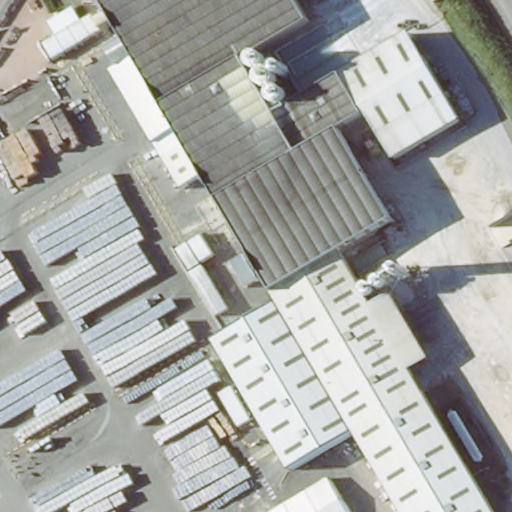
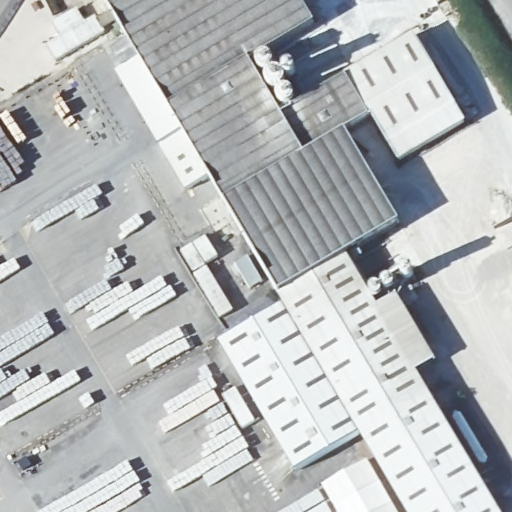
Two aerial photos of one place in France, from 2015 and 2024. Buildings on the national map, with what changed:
unchanged [(247,68),(278,120),(351,78),(367,114),(383,105),(396,136),(378,144),(365,122),(343,135),(398,227),(349,256),(280,295),(103,0),(294,0),(311,30),(247,68)]
new [(436,0),(445,0),(438,4),(436,0)]
unchanged [(409,44),(459,129),(392,169),(378,144),(396,136),(383,105),(367,114),(351,78),(409,44)]
unchanged [(280,295),(349,256),(499,512),(409,512),(363,434),(298,473),(220,343),(285,304),(280,295)]
unchanged [(437,362),(417,373),(377,305),(398,294),(437,362)]
new [(367,460),(397,512),(336,512),(321,487),(367,460)]
demolished [(354,512),(283,512),(337,479),(354,512)]

